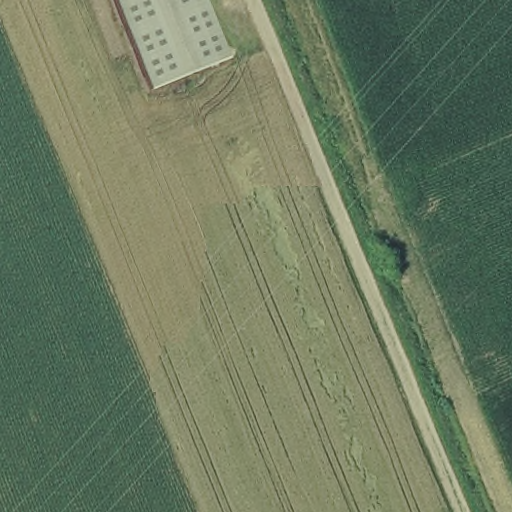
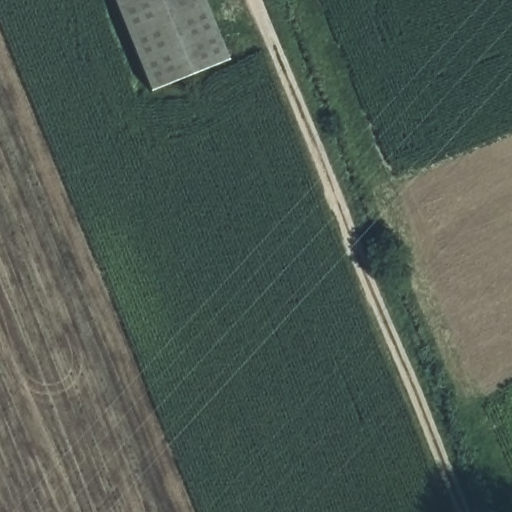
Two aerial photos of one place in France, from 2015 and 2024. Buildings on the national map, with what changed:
unchanged [(112,0),(202,0),(228,62),(150,93),(112,0)]

